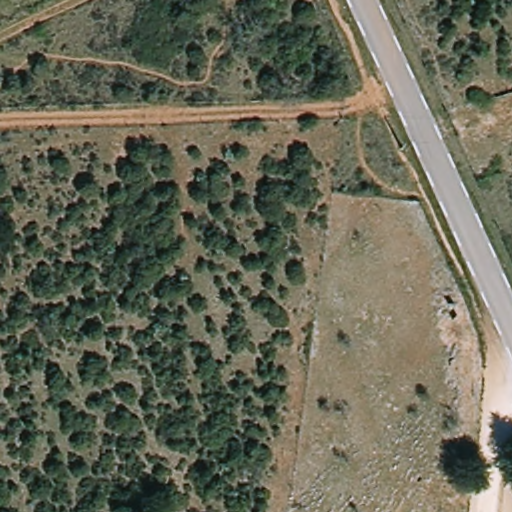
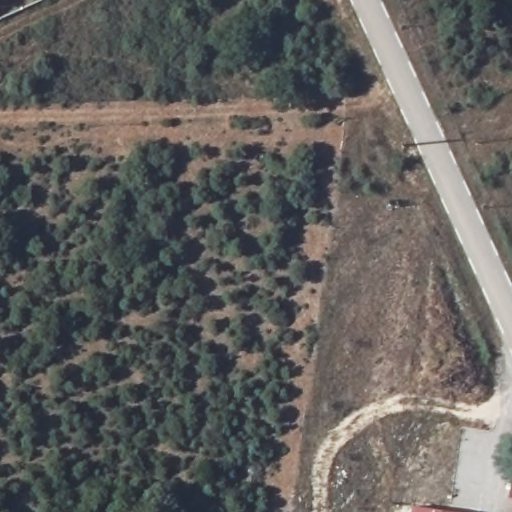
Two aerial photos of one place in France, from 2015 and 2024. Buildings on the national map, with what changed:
new [(453,512),(412,512),(413,506),(453,512)]

